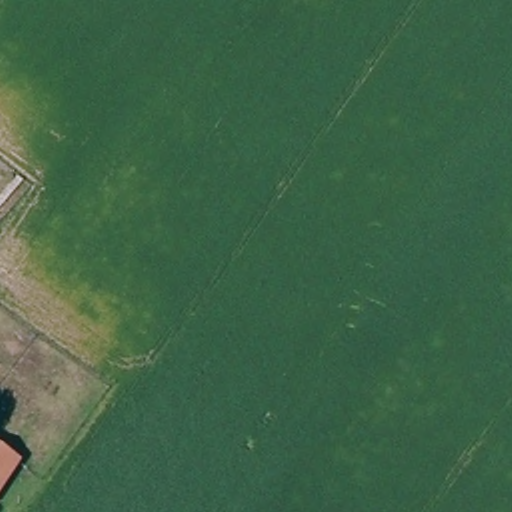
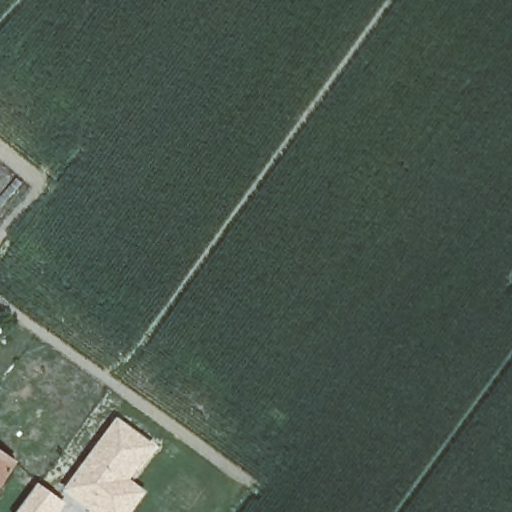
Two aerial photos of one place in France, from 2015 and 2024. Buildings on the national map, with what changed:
new [(155,446),(132,480),(149,493),(135,512),(96,512),(68,491),(121,421),(155,446)]
unchanged [(15,464),(0,487),(0,454),(15,464)]
new [(40,484),(69,505),(64,512),(20,512),(40,484)]

